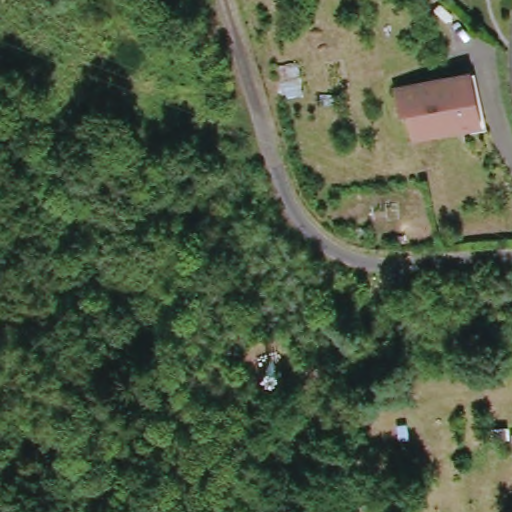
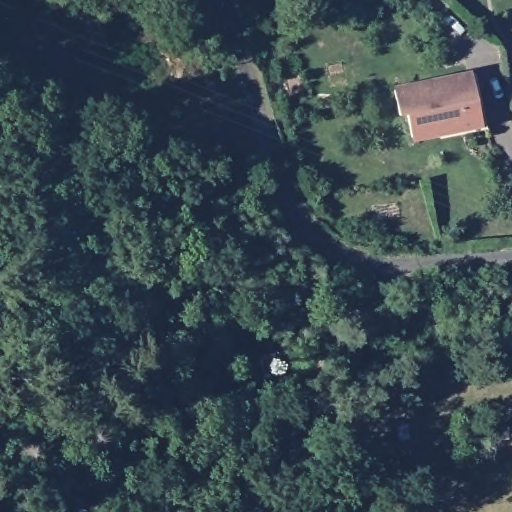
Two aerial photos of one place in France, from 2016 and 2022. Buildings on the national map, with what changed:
unchanged [(472,132),(415,140),(412,116),(407,117),(403,118),(402,107),(398,87),(399,87),(428,83),(473,77),(480,108),(482,131),(472,132)]

